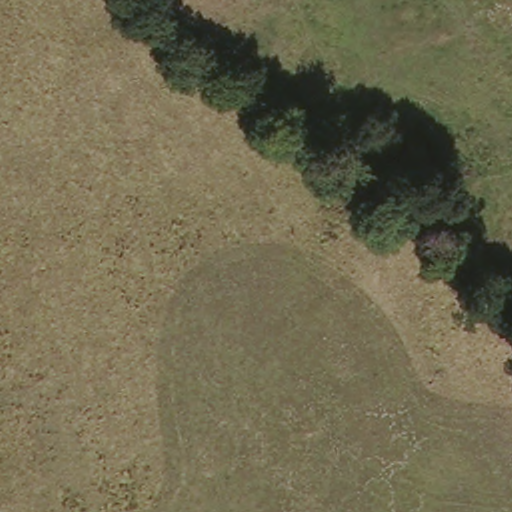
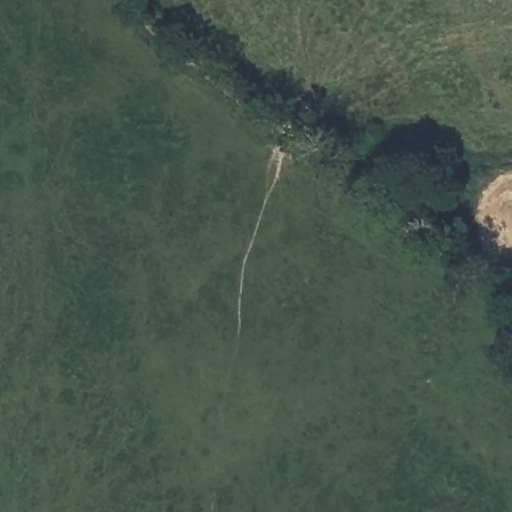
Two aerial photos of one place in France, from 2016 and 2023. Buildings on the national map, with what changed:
[]

